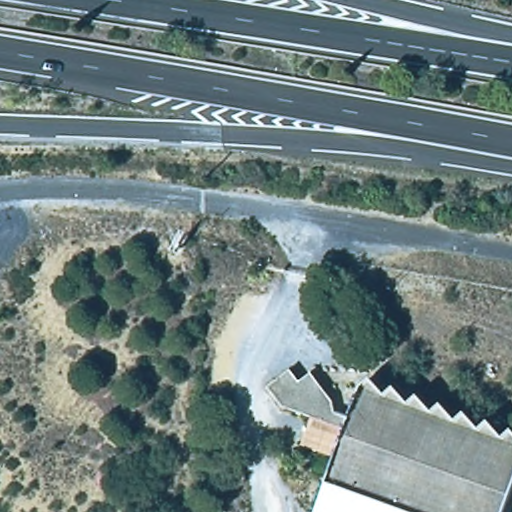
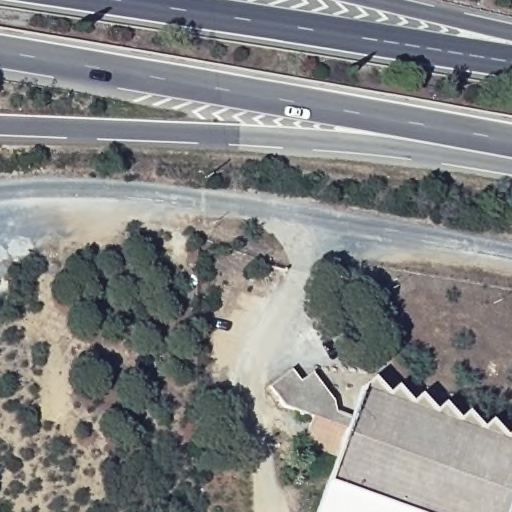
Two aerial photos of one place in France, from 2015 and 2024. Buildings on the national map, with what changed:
unchanged [(512,512),(414,512),(327,481),(320,478),(330,452),(297,439),(307,412),(277,402),(262,382),(285,365),(294,377),(305,367),(327,396),(329,407),(344,414),(356,381),(365,373),(380,390),(389,382),(404,398),(412,390),(427,407),(437,400),(450,415),(459,407),(475,423),(483,416),(499,432),(507,424),(512,430),(512,512)]
unchanged [(414,512),(318,512),(327,481),(414,512)]

